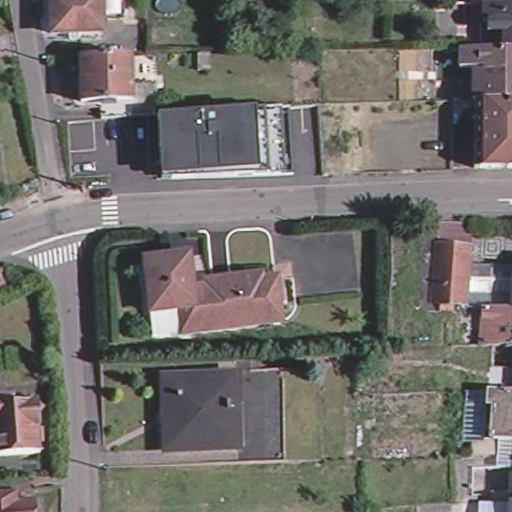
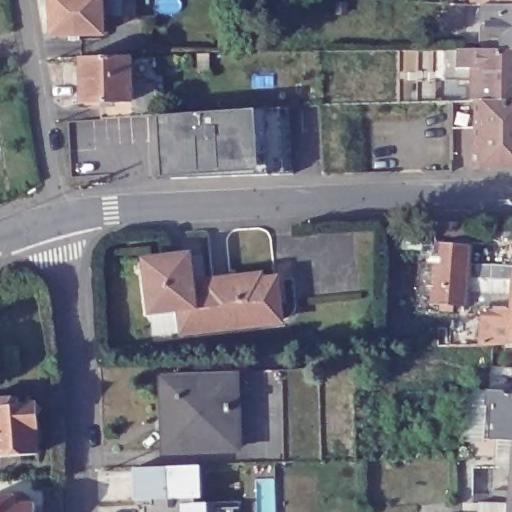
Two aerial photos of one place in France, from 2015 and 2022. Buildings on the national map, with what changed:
unchanged [(121,20),(99,21),(99,35),(50,36),(50,0),(121,0),(121,20)]
unchanged [(485,3),(463,2),(463,0),(512,0),(512,4),(485,3)]
unchanged [(463,2),(485,3),(512,4),(512,49),(464,47),(463,2)]
unchanged [(466,84),(466,98),(449,98),(449,99),(440,99),(440,78),(431,78),(431,47),(458,47),(464,47),(512,49),(512,100),(483,100),(483,98),(474,98),(471,98),(472,78),(457,78),(457,84),(466,84)]
unchanged [(100,115),(100,100),(82,101),(81,55),(132,53),(132,99),(132,113),(100,115)]
unchanged [(483,98),(483,100),(512,100),(512,166),(474,165),(474,98),(483,98)]
unchanged [(159,115),(257,110),(282,111),(283,170),(260,173),(184,178),(163,178),(159,115)]
unchanged [(470,308),(445,307),(445,313),(422,312),(427,224),(441,224),(476,224),(475,247),(472,296),(512,299),(512,345),(485,343),(487,309),(470,308)]
unchanged [(147,261),(191,256),(195,289),(197,309),(183,311),(153,314),(147,261)]
unchanged [(0,273),(9,292),(0,296),(0,273)]
unchanged [(210,288),(209,283),(263,277),(263,283),(278,281),(283,323),(185,334),(183,311),(197,309),(195,289),(210,288)]
unchanged [(245,373),(247,445),(175,448),(172,376),(245,373)]
unchanged [(476,439),(478,416),(498,417),(499,392),(512,393),(512,441),(476,439)]
unchanged [(41,399),(43,394),(58,403),(52,413),(53,450),(7,453),(5,437),(0,438),(0,396),(32,394),(32,399),(41,399)]
new [(206,502),(217,502),(217,508),(233,508),(233,512),(145,512),(145,505),(153,505),(152,499),(135,500),(133,467),(199,465),(201,502),(206,502)]
unchanged [(24,504),(30,504),(31,512),(0,512),(0,497),(22,495),(24,504)]

